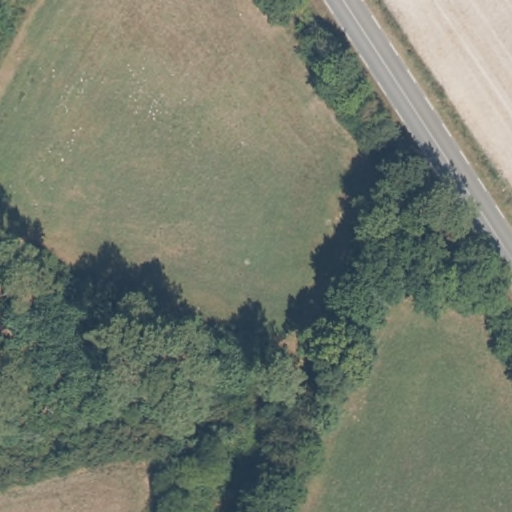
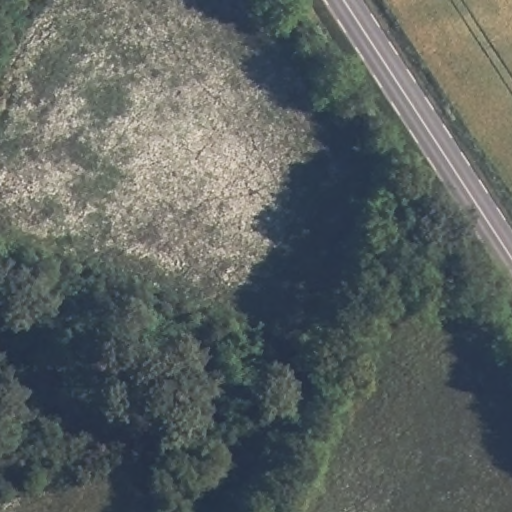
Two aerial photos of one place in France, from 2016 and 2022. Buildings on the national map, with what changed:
[]

